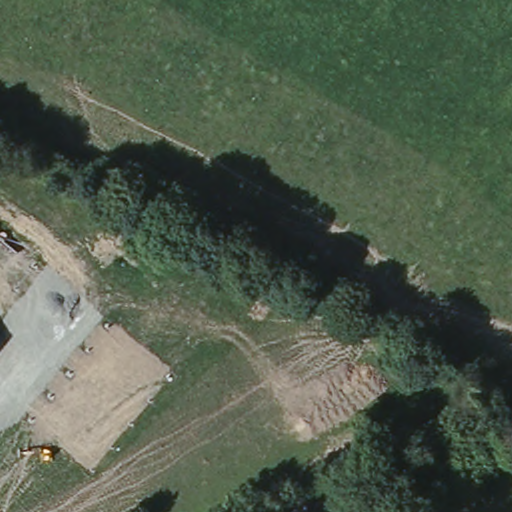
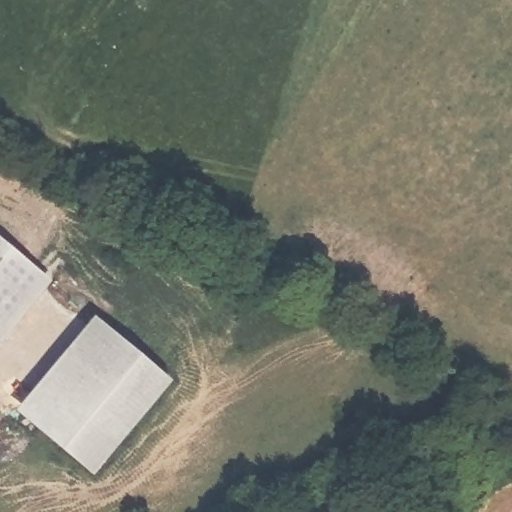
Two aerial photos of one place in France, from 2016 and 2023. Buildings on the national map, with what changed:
unchanged [(0,229),(54,272),(0,338),(0,229)]
new [(97,307),(111,318),(34,412),(20,400),(97,307)]
new [(111,318),(173,370),(95,463),(34,412),(111,318)]

